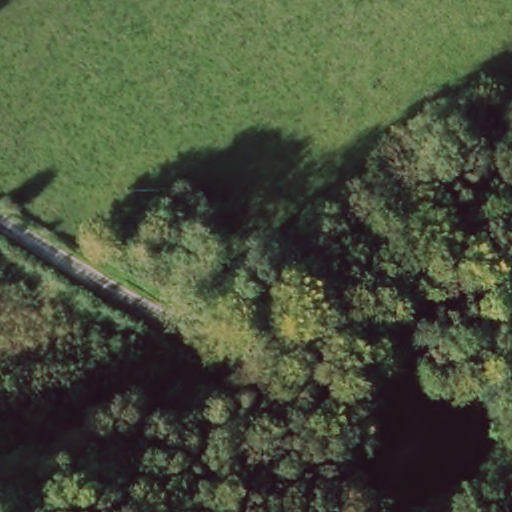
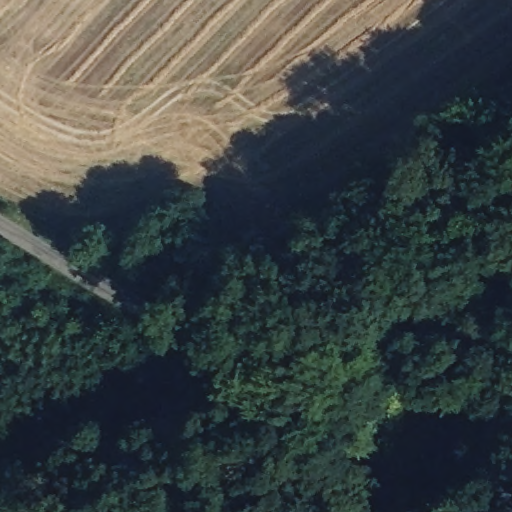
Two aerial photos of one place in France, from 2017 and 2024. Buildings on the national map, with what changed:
unchanged [(194,232),(207,266),(160,287),(146,254),(167,245),(164,235),(175,230),(179,239),(194,232)]

